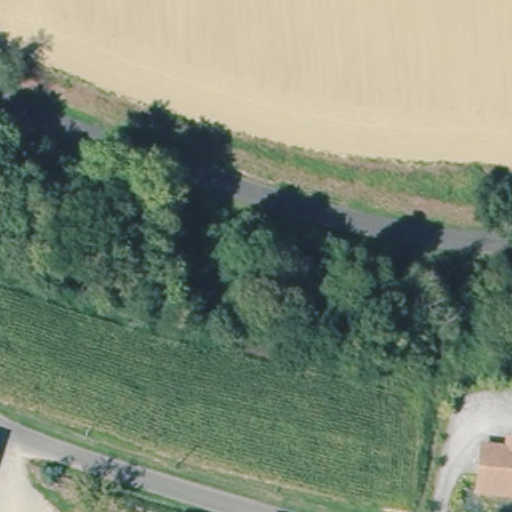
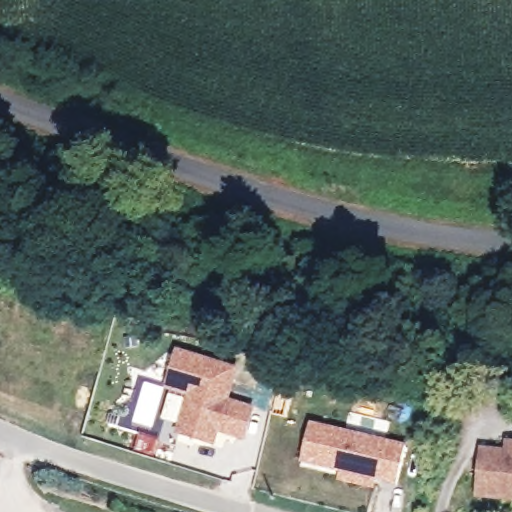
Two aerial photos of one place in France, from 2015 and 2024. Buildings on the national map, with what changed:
new [(239,369),(231,400),(255,406),(246,440),(220,433),(216,444),(175,432),(187,395),(165,389),(178,347),(239,369)]
new [(407,445),(400,485),(377,479),(374,490),(337,482),(341,471),(300,461),(311,421),(407,445)]
unchanged [(478,495),(483,450),(506,452),(507,442),(512,442),(512,498),(478,495)]

